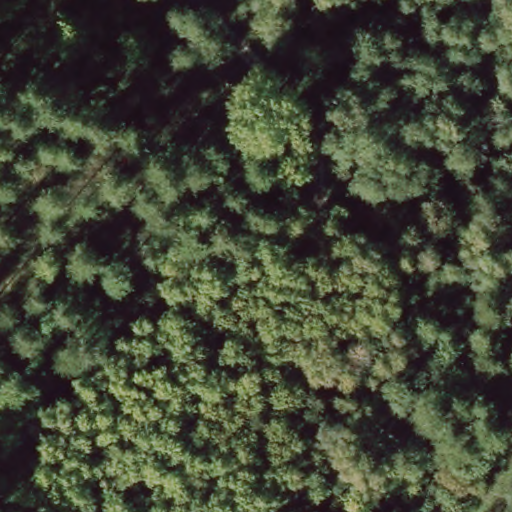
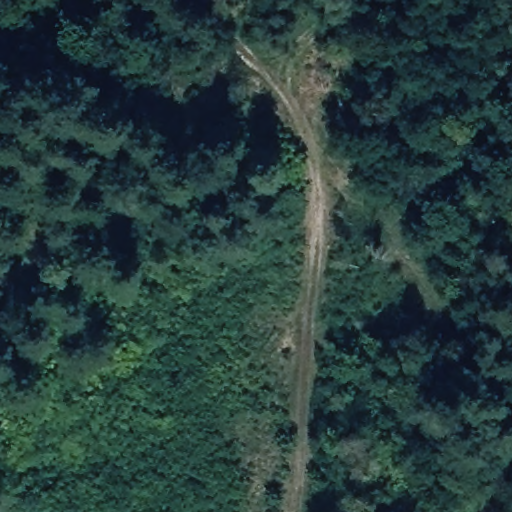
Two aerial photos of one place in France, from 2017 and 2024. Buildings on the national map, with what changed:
[]

